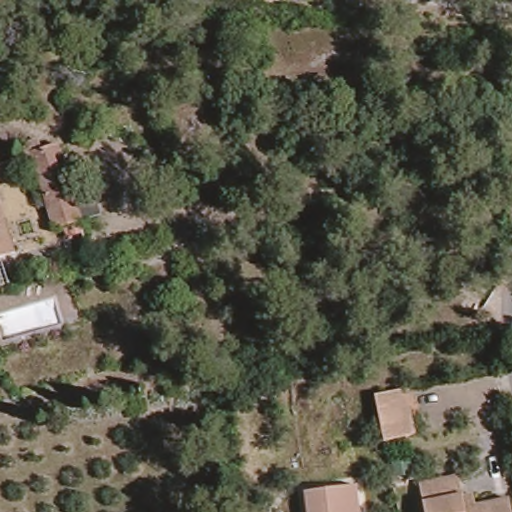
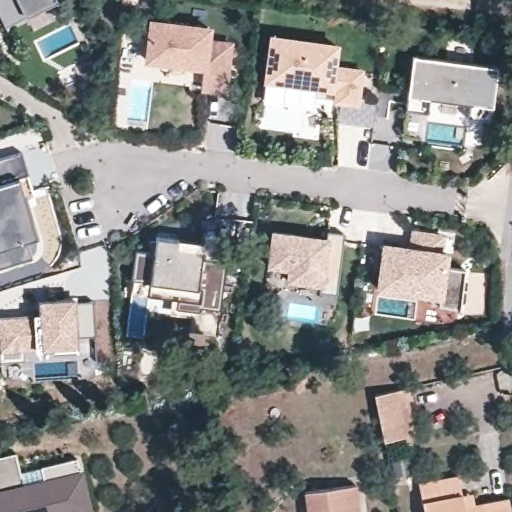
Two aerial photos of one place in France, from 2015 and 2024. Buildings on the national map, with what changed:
new [(0,14),(0,0),(59,0),(27,16),(7,26),(0,14)]
new [(236,43),(229,96),(201,92),(203,71),(144,65),(150,18),(214,26),(212,39),(236,43)]
new [(367,68),(361,108),(333,105),(332,91),(263,84),(270,35),(342,46),(339,65),(367,68)]
new [(404,110),(407,91),(413,55),(502,67),(496,105),(495,122),(469,120),(470,102),(431,97),(428,114),(404,110)]
demolished [(41,139),(44,150),(62,144),(85,219),(56,227),(33,154),(29,154),(27,144),(41,139)]
new [(29,175),(19,176),(37,239),(27,242),(32,257),(0,268),(0,159),(22,154),(29,175)]
demolished [(0,262),(0,198),(18,257),(0,262)]
new [(411,227),(446,232),(441,251),(452,254),(451,267),(466,270),(461,308),(439,305),(438,298),(376,290),(382,242),(406,245),(411,227)]
new [(325,231),(344,234),(336,296),(317,293),(316,287),(284,283),(285,270),(267,268),(272,230),(322,236),(325,231)]
new [(206,231),(233,235),(217,351),(167,345),(172,302),(130,295),(136,250),(156,250),(158,237),(203,244),(206,231)]
new [(38,298),(76,298),(76,303),(94,302),(96,336),(78,337),(78,347),(36,351),(23,351),(23,358),(2,359),(0,336),(0,318),(39,315),(38,298)]
unchanged [(418,438),(388,445),(378,398),(408,391),(418,438)]
new [(90,508),(71,512),(0,512),(0,486),(82,469),(90,508)]
unchanged [(459,475),(466,495),(476,493),(478,502),(511,496),(512,501),(512,512),(428,512),(423,482),(459,475)]
unchanged [(307,492),(361,485),(365,512),(310,512),(307,492)]

